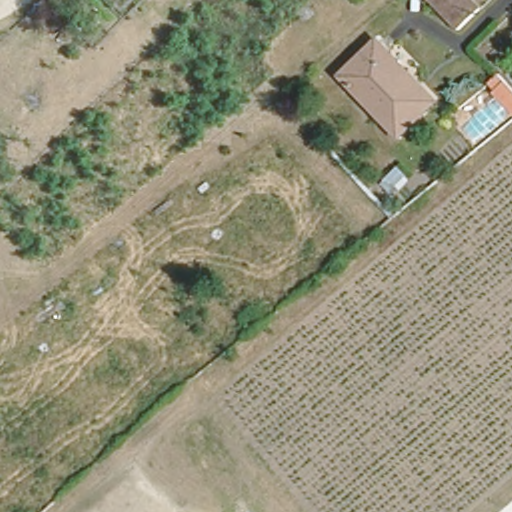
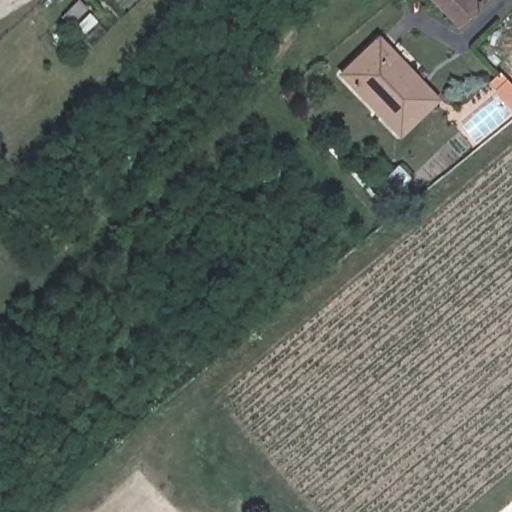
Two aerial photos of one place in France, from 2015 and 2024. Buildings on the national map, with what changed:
unchanged [(459,23),(433,0),(476,0),(479,3),(459,23)]
unchanged [(437,101),(403,137),(342,75),(377,40),(437,101)]
unchanged [(512,72),(512,109),(482,82),(501,62),(512,72)]

